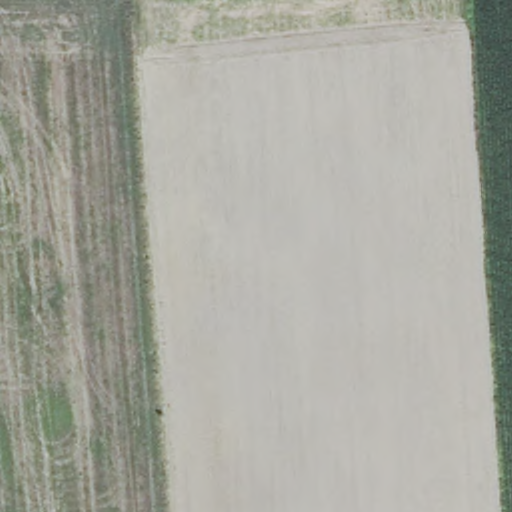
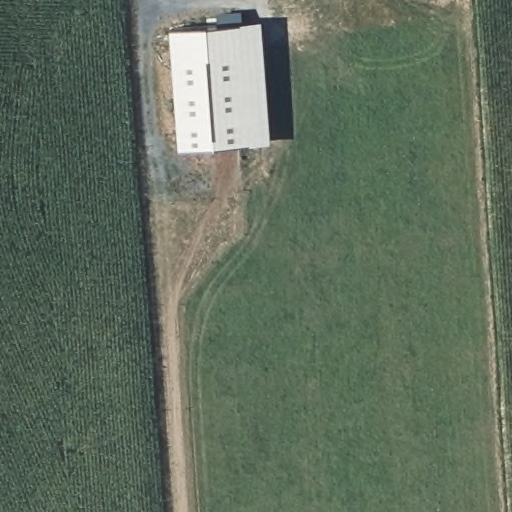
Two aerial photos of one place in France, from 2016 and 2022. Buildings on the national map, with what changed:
new [(263,22),(271,144),(179,151),(171,29),(263,22)]

